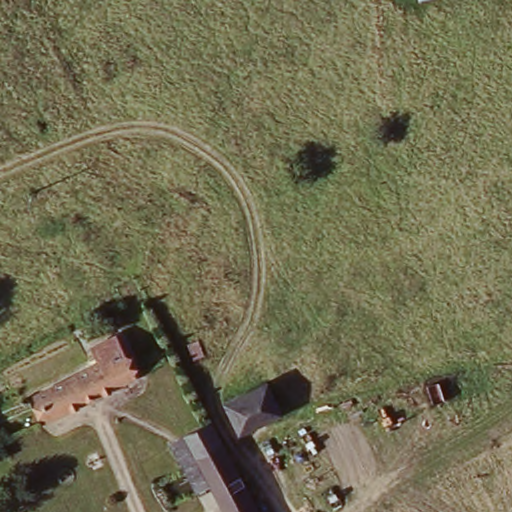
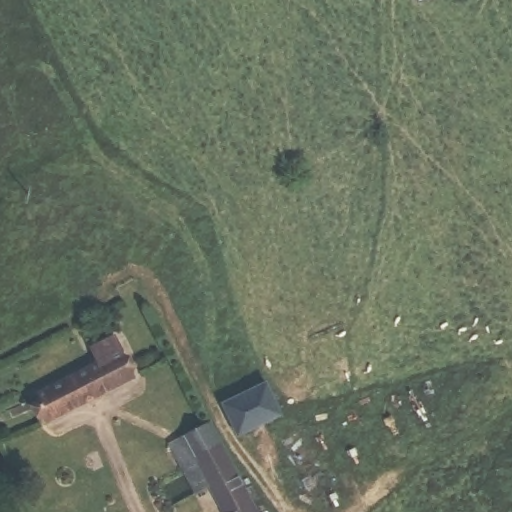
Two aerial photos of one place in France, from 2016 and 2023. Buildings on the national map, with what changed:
unchanged [(102,361),(94,346),(116,335),(124,349),(137,378),(50,423),(37,394),(102,361)]
unchanged [(267,385),(283,416),(238,438),(225,407),(267,385)]
unchanged [(222,512),(207,485),(191,494),(178,469),(166,445),(208,424),(254,512),(222,512)]

